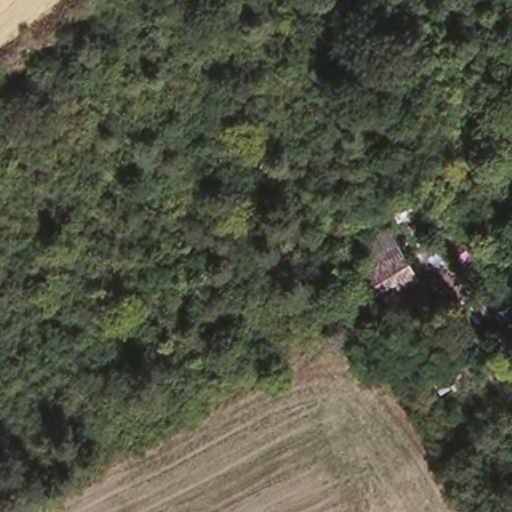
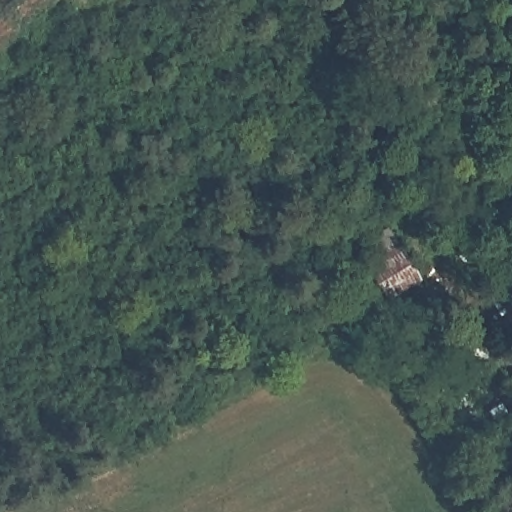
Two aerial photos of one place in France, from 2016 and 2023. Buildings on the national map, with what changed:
unchanged [(355,241),(390,222),(439,305),(390,329),(374,300),(384,296),(355,241)]

